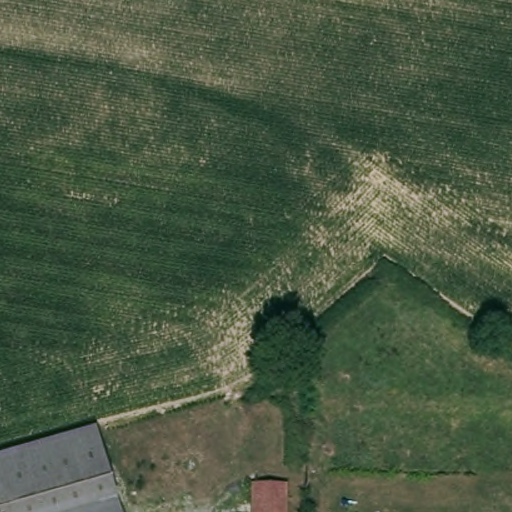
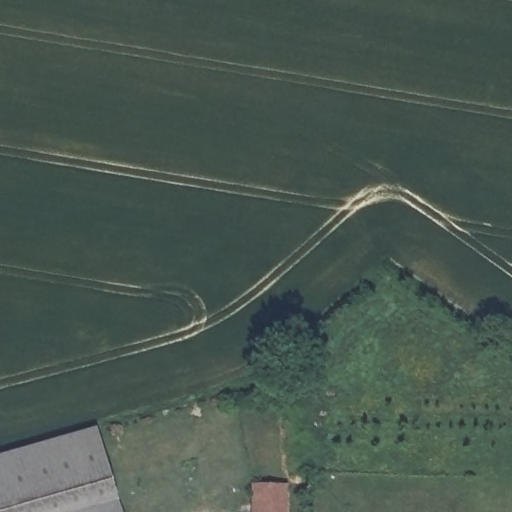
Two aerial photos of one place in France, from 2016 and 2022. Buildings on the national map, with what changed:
unchanged [(0,512),(0,454),(93,427),(119,512),(0,512)]
unchanged [(265,500),(266,481),(272,481),(283,481),(290,481),(297,482),(297,500),(297,506),(297,512),(265,512),(265,511),(265,500)]

